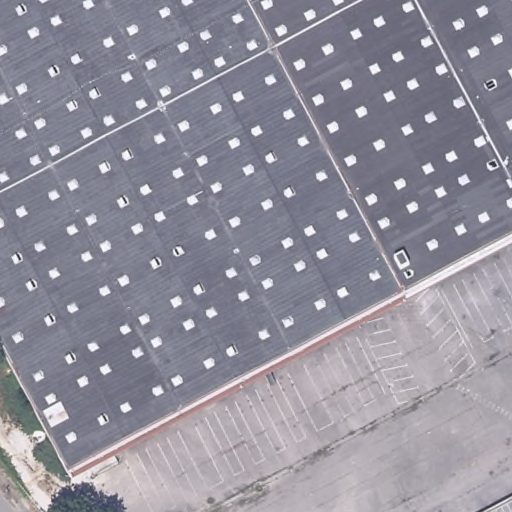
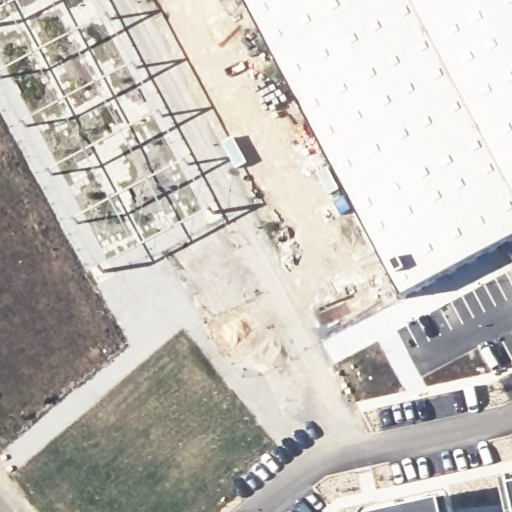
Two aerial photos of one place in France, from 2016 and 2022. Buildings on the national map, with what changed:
new [(0,81),(0,0),(100,0),(215,214),(103,274),(0,81)]
demolished [(400,304),(149,439),(65,483),(0,361),(0,0),(512,0),(512,245),(400,304)]
new [(405,299),(245,0),(512,0),(512,242),(405,299)]
new [(368,511),(405,504),(438,512),(368,512),(368,511)]

